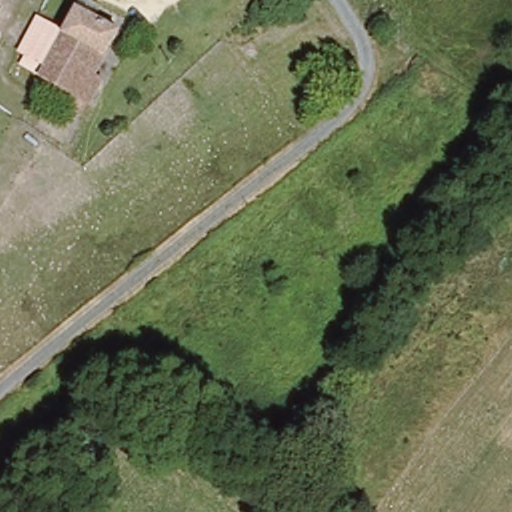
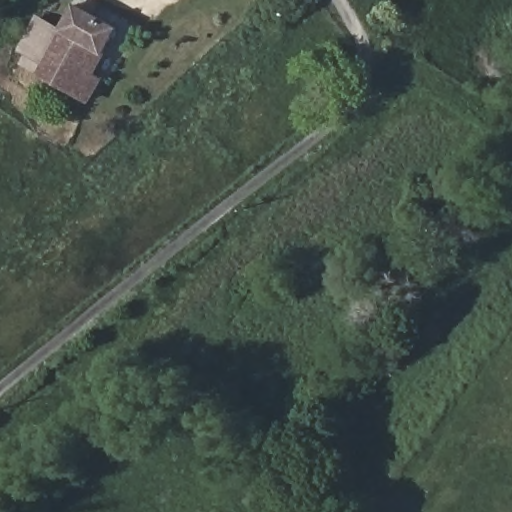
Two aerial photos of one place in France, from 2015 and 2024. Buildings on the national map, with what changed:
unchanged [(23,40),(33,18),(61,30),(77,2),(119,23),(83,89),(25,58),(33,45),(23,40)]

